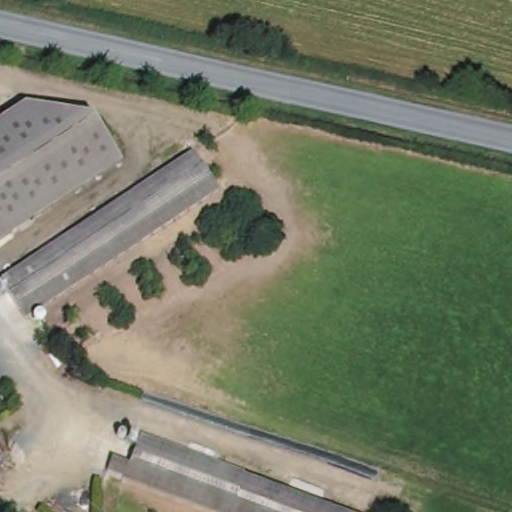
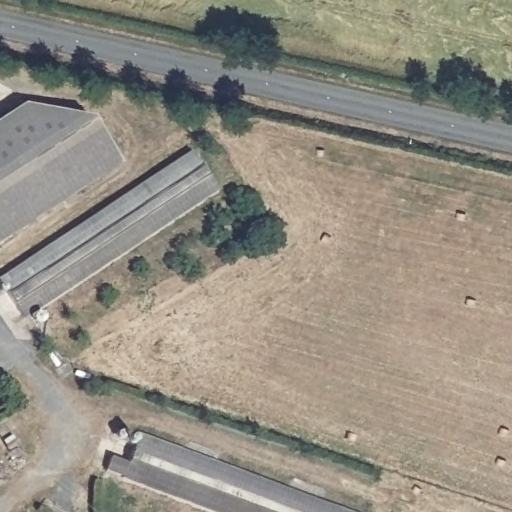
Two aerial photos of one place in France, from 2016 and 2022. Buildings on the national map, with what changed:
unchanged [(20,108),(25,110),(89,123),(115,167),(0,237),(0,120),(20,108)]
unchanged [(131,202),(195,160),(219,197),(118,263),(27,324),(24,318),(3,287),(7,283),(131,202)]
unchanged [(180,497),(110,471),(115,458),(130,465),(141,440),(190,457),(180,497)]
unchanged [(263,487),(329,512),(216,512),(180,497),(190,457),(263,487)]

